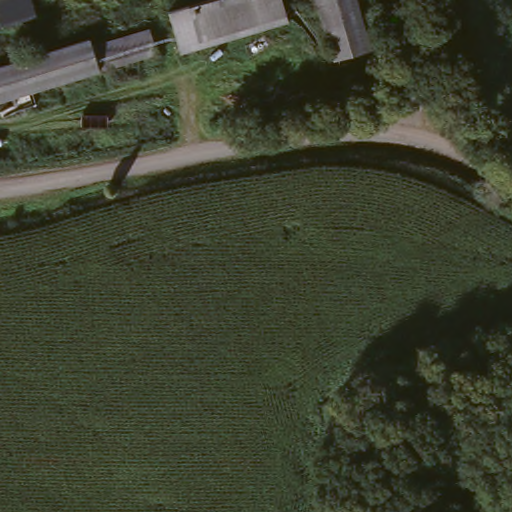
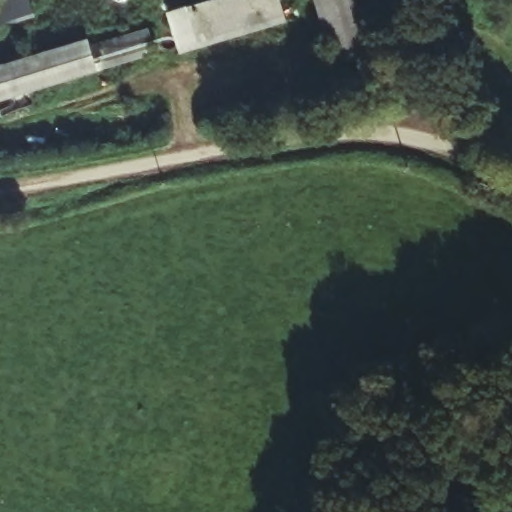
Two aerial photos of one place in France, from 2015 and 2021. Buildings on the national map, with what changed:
unchanged [(208,0),(275,0),(282,24),(175,55),(163,13),(208,0)]
unchanged [(311,0),(350,0),(365,58),(328,67),(311,0)]
unchanged [(79,41),(82,50),(139,31),(147,56),(0,101),(0,65),(79,41)]

